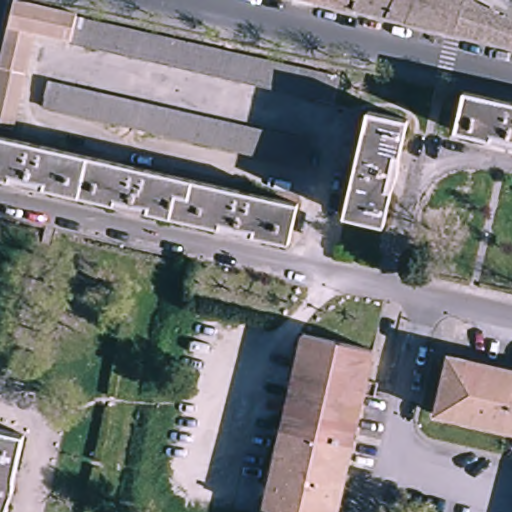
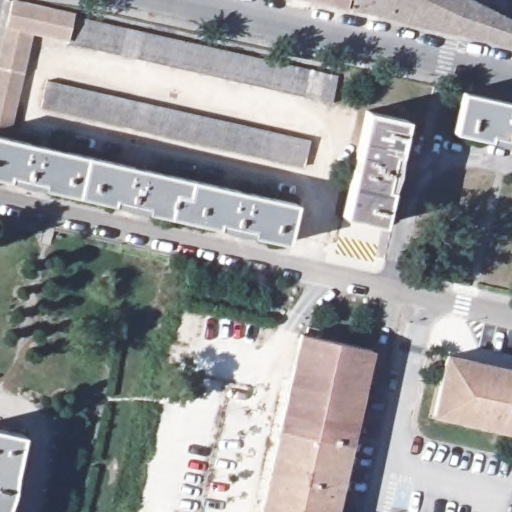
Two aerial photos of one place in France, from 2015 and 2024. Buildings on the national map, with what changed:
unchanged [(317,0),(354,0),(457,0),(453,31),(352,8),(317,0)]
unchanged [(453,31),(457,0),(467,0),(512,23),(512,46),(453,31)]
unchanged [(75,15),(69,42),(35,35),(12,126),(0,123),(0,57),(14,1),(75,15)]
unchanged [(338,75),(331,101),(69,42),(75,15),(338,75)]
unchanged [(307,143),(301,168),(196,142),(38,105),(44,80),(307,143)]
unchanged [(512,103),(512,147),(461,134),(470,92),(512,103)]
unchanged [(368,113),(408,122),(381,227),(341,217),(368,113)]
unchanged [(0,176),(0,134),(296,204),(287,243),(0,176)]
unchanged [(334,430),(281,418),(301,330),(372,346),(351,435),(334,430)]
unchanged [(421,421),(437,350),(512,367),(512,442),(421,421)]
unchanged [(259,511),(281,418),(334,430),(351,435),(334,512),(261,512),(259,511)]
unchanged [(7,512),(0,512),(0,427),(26,433),(7,512)]

